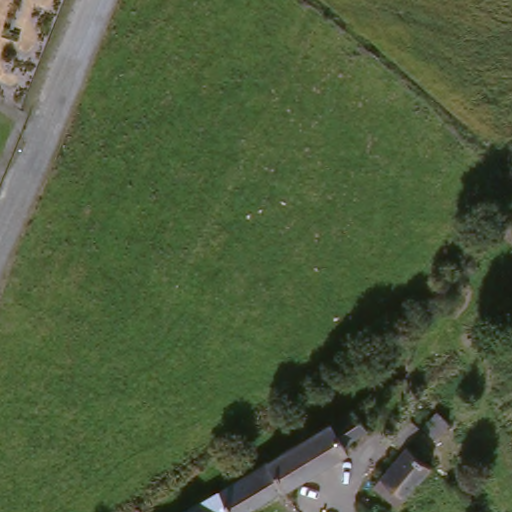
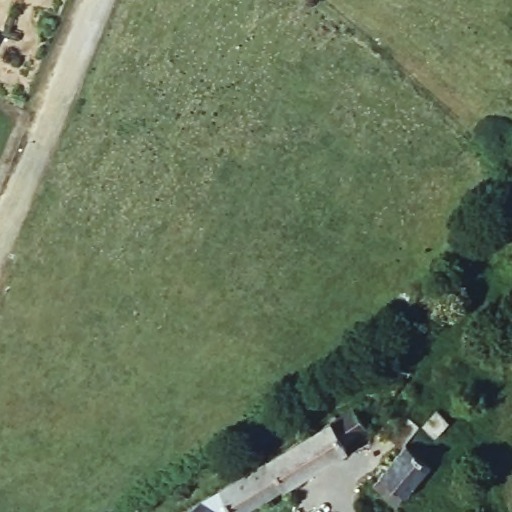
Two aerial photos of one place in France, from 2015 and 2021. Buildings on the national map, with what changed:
unchanged [(354,402),(368,424),(343,444),(348,450),(242,512),(216,512),(199,494),(354,402)]
unchanged [(435,436),(423,426),(436,412),(448,422),(435,436)]
unchanged [(396,453),(388,444),(407,426),(416,434),(396,453)]
unchanged [(396,501),(374,484),(409,445),(431,464),(396,501)]
unchanged [(216,512),(169,512),(199,494),(216,512)]

